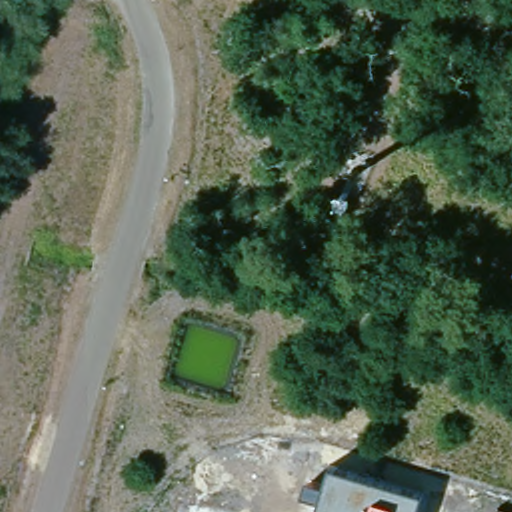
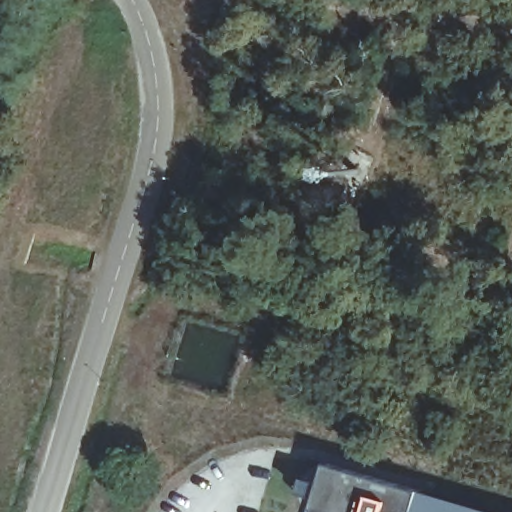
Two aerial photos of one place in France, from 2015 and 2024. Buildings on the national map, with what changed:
unchanged [(417,512),(316,512),(316,511),(320,498),(301,493),(305,478),(325,483),(329,465),(422,492),(417,512)]
new [(422,492),(490,512),(417,512),(422,492)]

